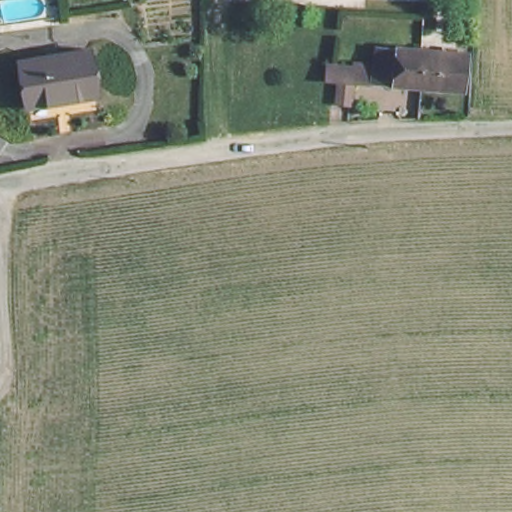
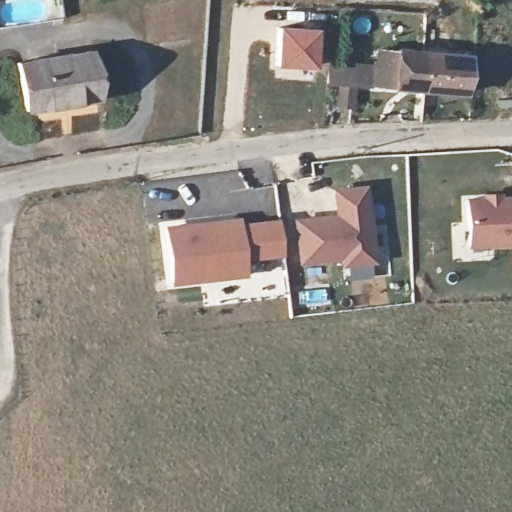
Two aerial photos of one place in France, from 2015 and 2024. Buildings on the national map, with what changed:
new [(276,25),(318,28),(314,67),(274,66),(276,25)]
unchanged [(99,94),(24,109),(16,60),(91,46),(99,94)]
unchanged [(422,90),(378,90),(379,49),(423,51),(422,90)]
unchanged [(423,51),(464,53),(463,90),(422,90),(423,51)]
unchanged [(350,69),(350,105),(339,105),(339,85),(324,84),(325,68),(350,69)]
new [(336,217),(335,192),(370,189),(377,268),(344,271),(343,266),(300,270),(295,221),(336,217)]
new [(485,201),(484,197),(504,196),(504,200),(512,200),(512,250),(470,251),(468,201),(485,201)]
new [(240,215),(241,221),(246,262),(249,279),(169,289),(159,223),(240,215)]
new [(279,217),(284,258),(246,262),(241,221),(279,217)]

